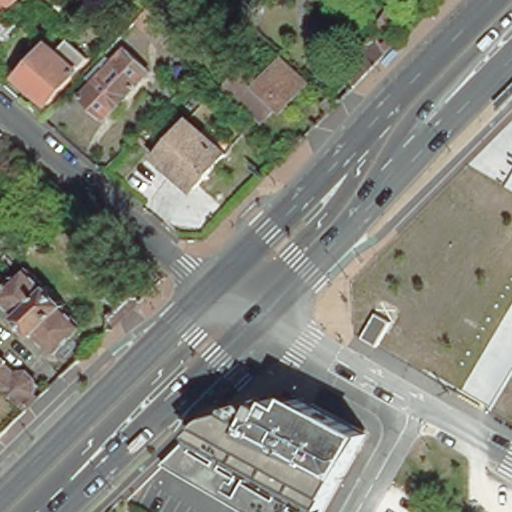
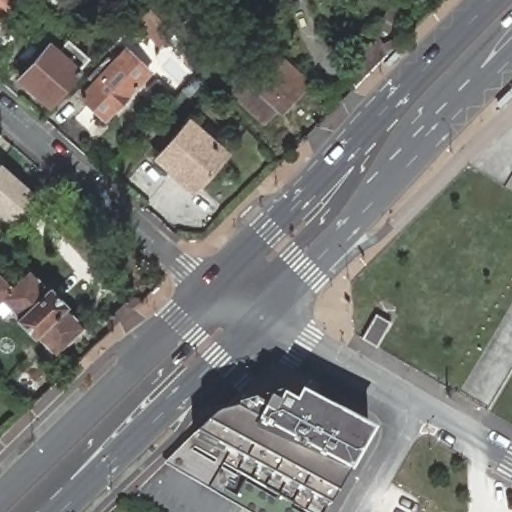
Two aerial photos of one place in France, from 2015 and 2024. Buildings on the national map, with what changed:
unchanged [(11,40),(0,51),(0,0),(18,0),(5,14),(17,25),(7,36),(11,40)]
unchanged [(152,53),(128,30),(142,15),(128,1),(129,0),(138,0),(140,1),(141,0),(150,0),(177,25),(164,39),(173,48),(175,52),(171,56),(159,45),(152,53)]
unchanged [(413,26),(375,65),(367,56),(388,7),(413,26)]
unchanged [(19,75),(58,31),(78,49),(68,60),(78,69),(49,102),(19,75)]
unchanged [(106,121),(81,98),(93,85),(86,79),(105,58),(112,65),(125,52),(149,74),(106,121)]
unchanged [(278,110),(272,105),(260,118),(224,83),(242,63),(256,77),(277,54),(305,80),(278,110)]
unchanged [(330,112),(320,103),(328,95),(338,104),(330,112)]
unchanged [(196,190),(158,156),(188,122),(226,155),(196,190)]
new [(1,162),(39,195),(26,210),(12,225),(0,214),(0,163),(1,162)]
unchanged [(5,289),(8,286),(10,283),(20,274),(26,267),(46,287),(48,286),(49,285),(66,302),(66,304),(65,305),(84,325),(57,352),(37,332),(34,336),(16,318),(19,314),(0,295),(5,289)]
unchanged [(143,284),(154,272),(166,282),(153,294),(143,284)]
unchanged [(10,283),(8,286),(5,289),(0,295),(0,273),(10,283)]
unchanged [(389,323),(376,345),(363,339),(376,316),(389,323)]
unchanged [(27,410),(26,410),(26,409),(22,406),(0,386),(0,354),(17,371),(29,369),(43,384),(37,390),(42,396),(27,410)]
unchanged [(368,433),(347,471),(334,493),(326,505),(322,512),(247,512),(164,465),(193,435),(205,425),(211,417),(233,411),(233,405),(277,396),(293,404),(297,396),(368,433)]

